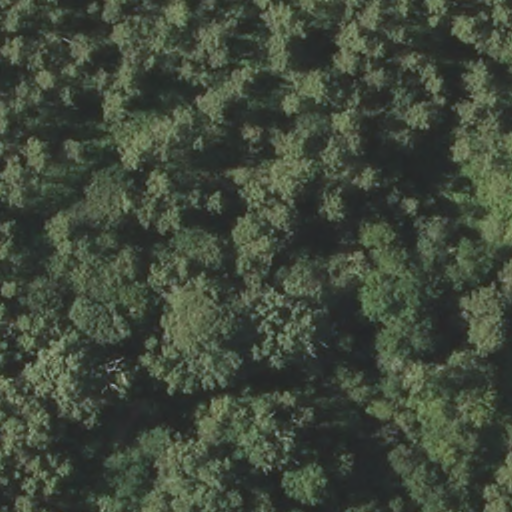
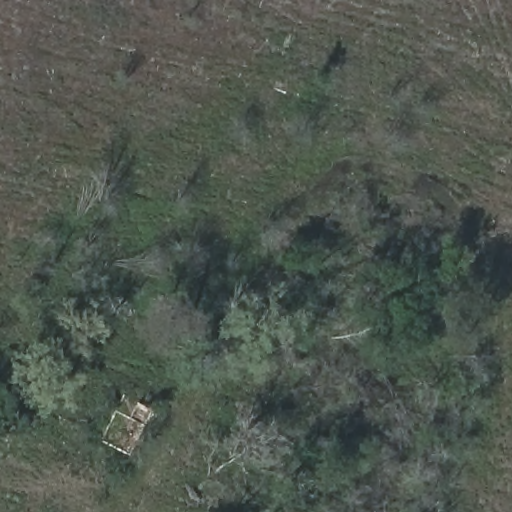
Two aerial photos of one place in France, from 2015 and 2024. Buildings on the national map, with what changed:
unchanged [(132,461),(99,445),(108,427),(127,396),(142,404),(159,413),(132,461)]

